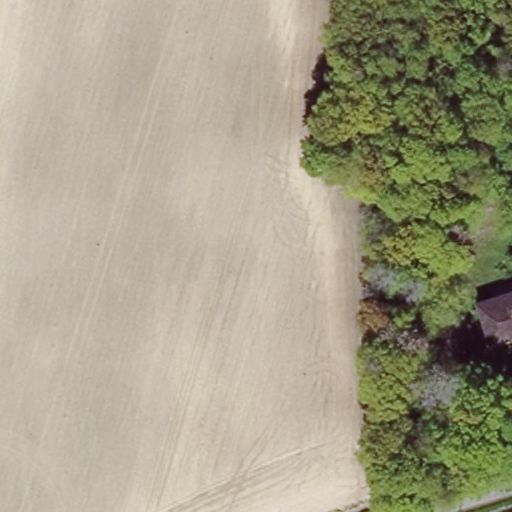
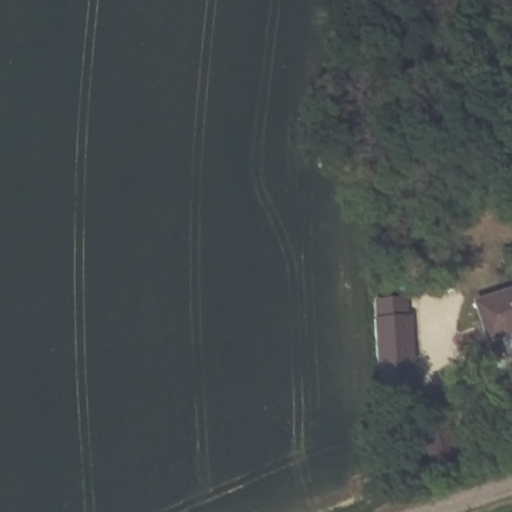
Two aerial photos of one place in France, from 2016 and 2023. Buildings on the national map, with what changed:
unchanged [(474,301),(489,297),(512,289),(512,332),(485,341),(474,301)]
new [(379,383),(374,299),(409,298),(412,381),(379,383)]

